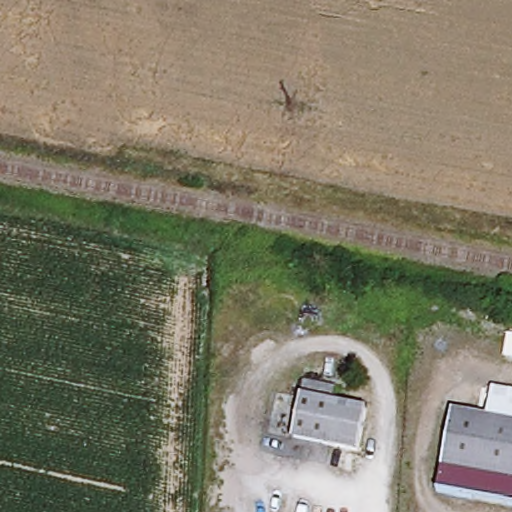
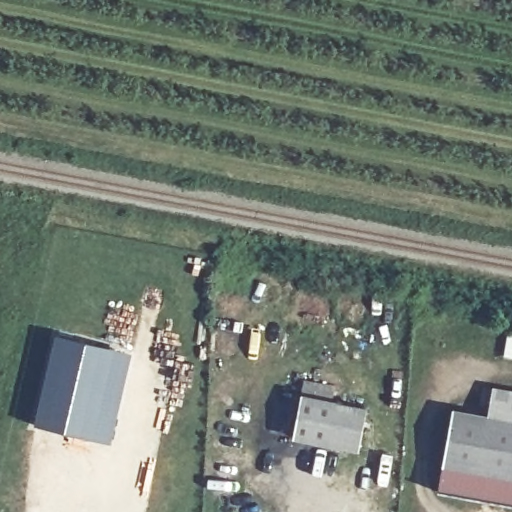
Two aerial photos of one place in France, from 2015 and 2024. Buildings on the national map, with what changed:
new [(54,333),(132,353),(111,444),(33,425),(54,333)]
unchanged [(452,411),(488,418),(494,388),(512,391),(512,507),(438,495),(452,411)]
unchanged [(306,396),(370,410),(362,452),(298,438),(306,396)]

